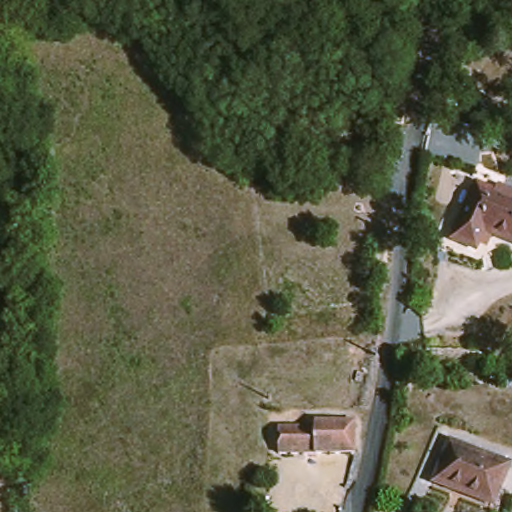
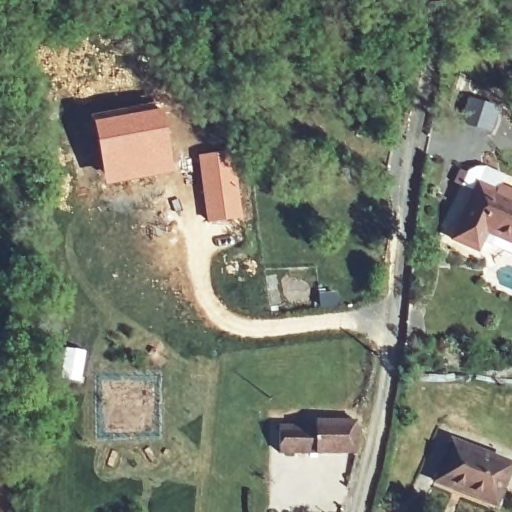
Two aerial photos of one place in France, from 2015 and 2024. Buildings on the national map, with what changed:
new [(468,102),(494,110),(487,132),(461,125),(468,102)]
new [(163,107),(175,173),(104,186),(90,119),(163,107)]
new [(236,150),(242,217),(206,222),(197,154),(236,150)]
unchanged [(485,235),(471,254),(444,234),(481,181),(500,192),(505,189),(512,194),(512,255),(485,235)]
unchanged [(278,427),(311,428),(310,423),(350,425),(350,455),(278,453),(278,427)]
unchanged [(446,485),(432,478),(446,440),(505,460),(495,496),(491,504),(446,485)]

